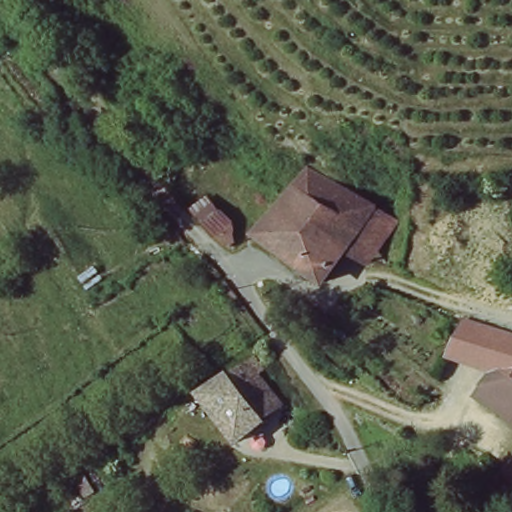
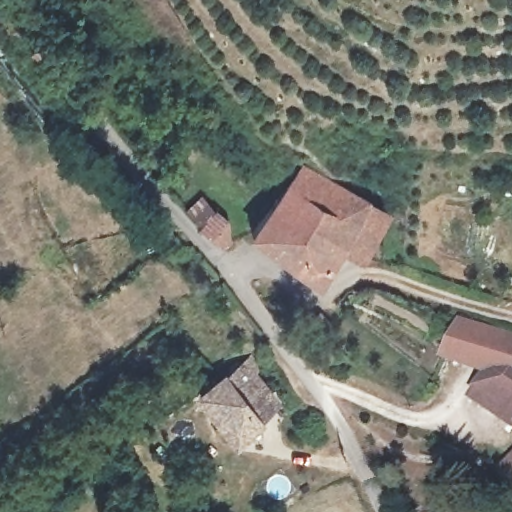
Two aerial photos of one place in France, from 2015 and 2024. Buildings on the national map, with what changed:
unchanged [(323,283),(318,284),(250,244),(248,242),(270,206),(300,159),(370,201),(342,249),(323,283)]
unchanged [(229,244),(188,209),(204,191),(241,232),(229,244)]
unchanged [(370,201),(394,216),(367,263),(342,249),(370,201)]
unchanged [(82,287),(69,259),(90,246),(102,274),(82,287)]
unchanged [(474,352),(452,344),(459,329),(463,322),(489,330),(474,352)]
unchanged [(239,366),(274,416),(256,427),(223,377),(239,366)]
unchanged [(484,371),(512,383),(512,420),(472,394),(484,371)]
unchanged [(256,427),(228,446),(195,395),(216,381),(223,377),(256,427)]
unchanged [(267,493),(340,447),(343,451),(350,463),(354,468),(346,473),(283,512),(279,512),(267,493)]
unchanged [(512,458),(512,485),(498,474),(512,458)]

